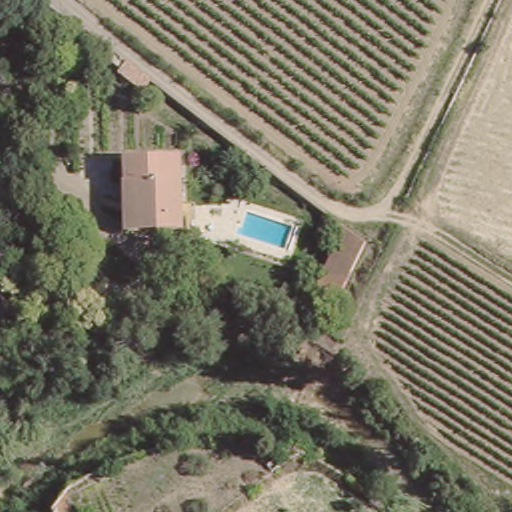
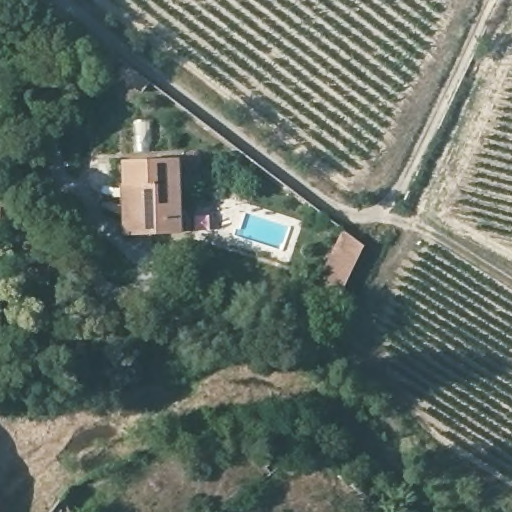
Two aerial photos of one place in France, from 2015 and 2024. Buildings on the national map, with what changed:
unchanged [(185,159),(187,234),(165,235),(164,224),(141,225),(140,188),(118,189),(117,161),(185,159)]
unchanged [(347,262),(327,253),(333,227),(357,239),(347,262)]

